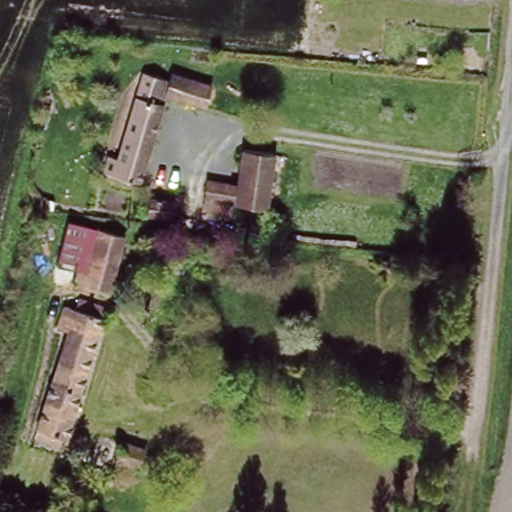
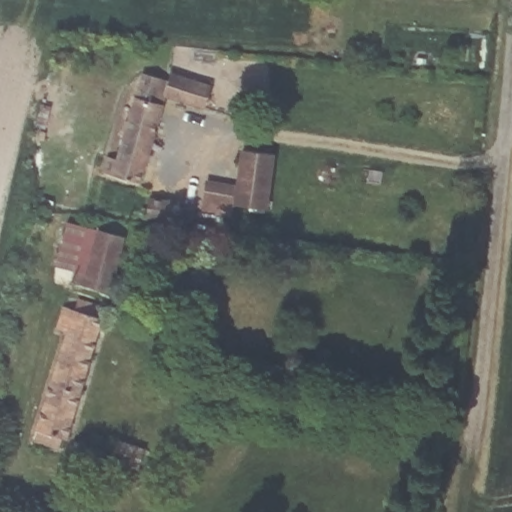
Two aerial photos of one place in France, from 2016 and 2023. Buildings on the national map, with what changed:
unchanged [(171,81),(208,91),(203,114),(164,103),(140,189),(107,180),(112,163),(119,165),(143,81),(168,88),(171,81)]
unchanged [(241,206),(249,155),(278,159),(271,210),(241,206)]
unchanged [(237,188),(233,205),(208,200),(211,183),(237,188)]
unchanged [(150,196),(173,200),(171,210),(148,206),(150,196)]
unchanged [(124,238),(108,294),(78,285),(81,274),(57,267),(69,223),(124,238)]
unchanged [(62,440),(59,449),(38,443),(68,334),(61,332),(68,310),(79,314),(82,304),(103,310),(66,441),(62,440)]
unchanged [(118,440),(143,447),(139,464),(113,456),(118,440)]

